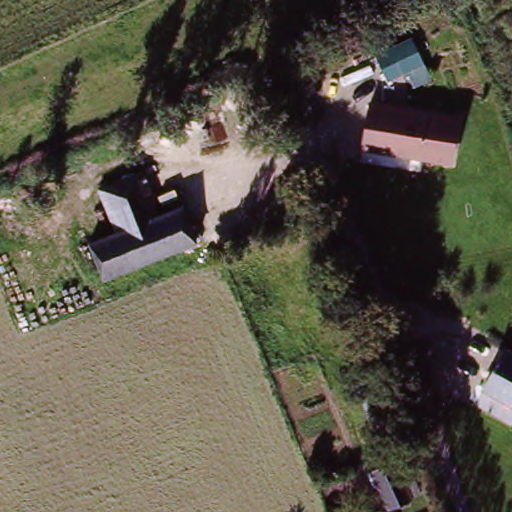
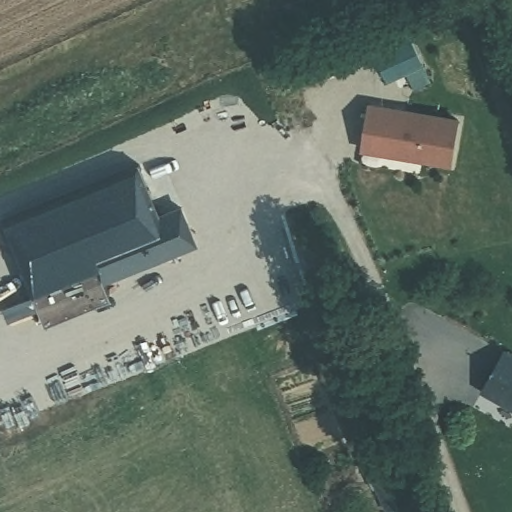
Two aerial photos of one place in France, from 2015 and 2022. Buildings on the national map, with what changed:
unchanged [(372,102),(464,118),(455,164),(365,148),(372,102)]
new [(101,189),(120,232),(90,244),(104,277),(112,298),(46,325),(35,297),(1,219),(137,166),(140,173),(101,189)]
unchanged [(158,217),(120,232),(101,189),(140,173),(158,217)]
unchanged [(183,207),(196,239),(104,277),(90,244),(120,232),(158,217),(183,207)]
unchanged [(488,394),(510,353),(512,354),(512,409),(488,394)]
unchanged [(412,499),(386,510),(369,470),(395,460),(412,499)]

